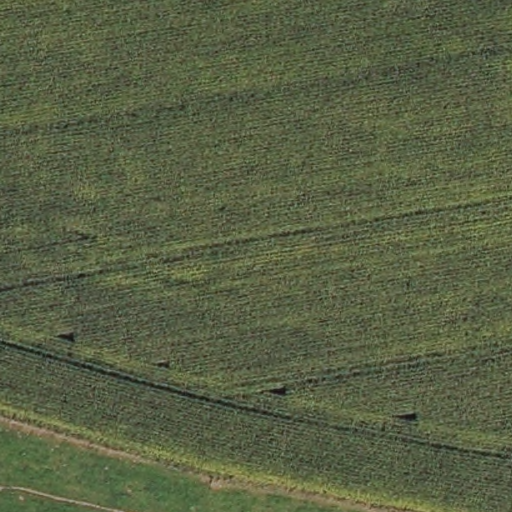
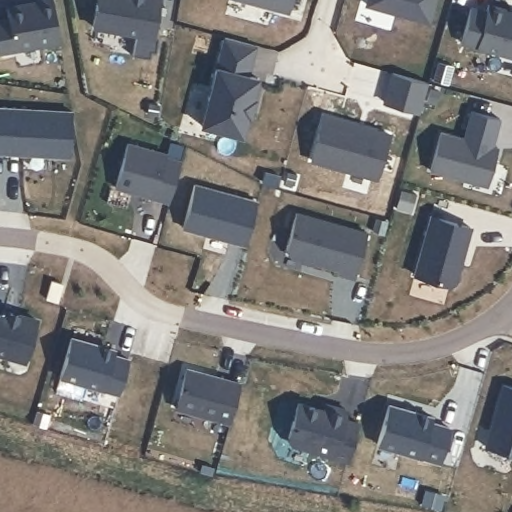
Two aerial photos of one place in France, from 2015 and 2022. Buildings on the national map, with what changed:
new [(54,37),(0,47),(0,16),(6,15),(4,4),(25,0),(48,0),(54,37)]
new [(154,39),(90,29),(95,0),(160,0),(154,39)]
new [(286,8),(258,0),(288,0),(286,8)]
new [(429,24),(364,5),(366,0),(436,0),(429,24)]
new [(487,2),(512,9),(512,57),(460,43),(470,4),(485,6),(487,2)]
new [(257,46),(251,72),(259,75),(253,95),(258,96),(251,119),(248,118),(243,136),(199,125),(215,63),(223,36),(257,46)]
new [(427,83),(419,112),(384,103),(392,74),(427,83)]
new [(64,153),(0,149),(0,105),(67,109),(64,153)]
new [(497,116),(490,143),(496,145),(486,182),(431,167),(442,130),(464,136),(471,110),(497,116)]
new [(386,131),(374,175),(311,156),(323,114),(386,131)]
new [(169,151),(168,156),(181,160),(169,203),(131,193),(128,206),(106,200),(110,185),(114,187),(128,141),(169,151)]
new [(254,200),(243,241),(181,225),(193,182),(254,200)]
new [(366,231),(354,275),(339,271),(340,267),(289,253),(285,246),(295,211),(366,231)]
new [(472,225),(457,281),(452,285),(412,275),(429,213),(472,225)]
new [(61,282),(56,300),(44,297),(49,279),(61,282)]
new [(3,312),(3,307),(38,317),(25,362),(0,354),(0,312),(3,312)]
new [(117,347),(115,353),(129,358),(118,395),(58,376),(71,334),(117,347)]
new [(238,381),(227,421),(174,407),(184,367),(238,381)]
new [(512,455),(482,445),(500,383),(512,386),(512,455)]
new [(345,411),(343,418),(359,422),(349,461),(291,445),(286,438),(297,401),(345,411)]
new [(434,415),(432,421),(452,427),(441,463),(376,445),(389,401),(434,415)]

